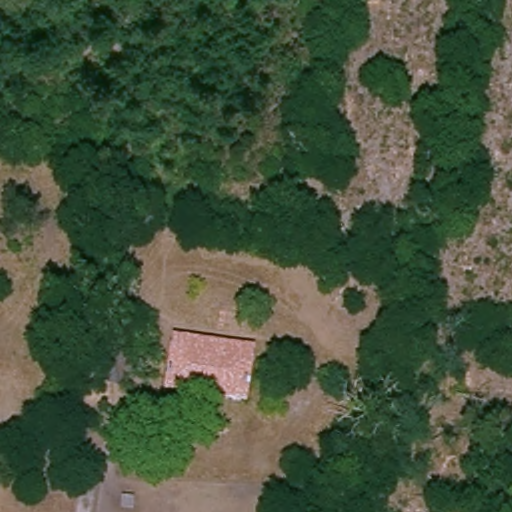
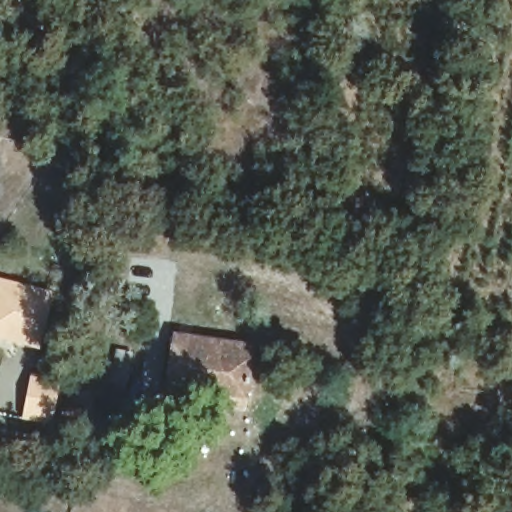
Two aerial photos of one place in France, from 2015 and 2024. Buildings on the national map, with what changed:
new [(40,351),(0,340),(0,278),(56,292),(40,351)]
unchanged [(112,376),(117,346),(122,347),(122,335),(135,336),(132,348),(130,377),(112,376)]
unchanged [(252,343),(248,395),(165,390),(170,338),(252,343)]
new [(32,371),(62,377),(51,425),(21,418),(32,371)]

